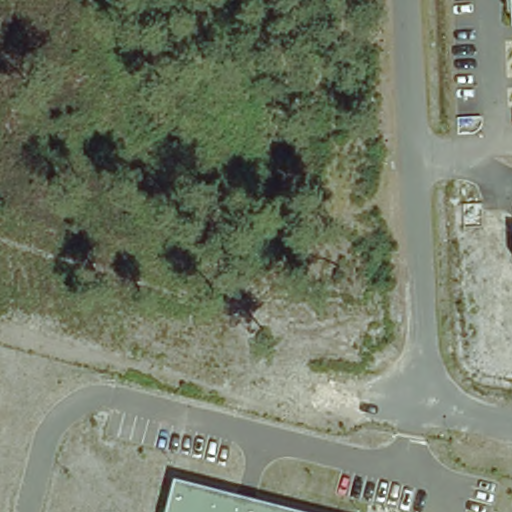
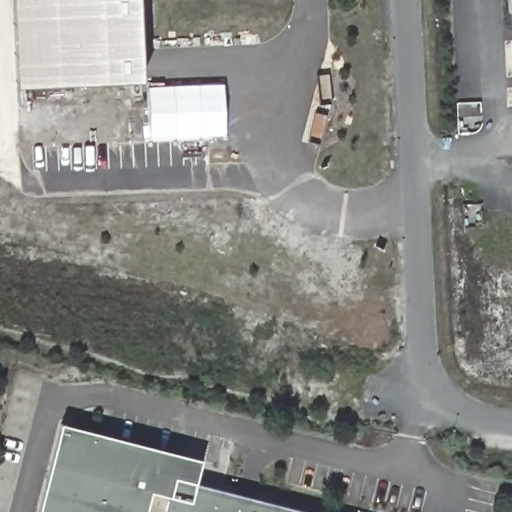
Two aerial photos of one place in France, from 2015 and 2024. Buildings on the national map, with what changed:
new [(26,82),(22,0),(151,0),(155,75),(26,82)]
new [(224,83),(226,135),(150,137),(147,86),(224,83)]
new [(60,423),(200,460),(195,482),(174,477),(170,495),(150,492),(145,512),(37,512),(60,423)]
unchanged [(170,495),(174,477),(195,482),(316,512),(165,512),(170,495)]

